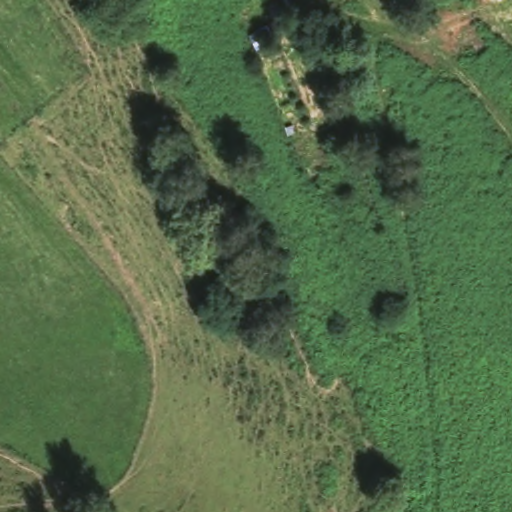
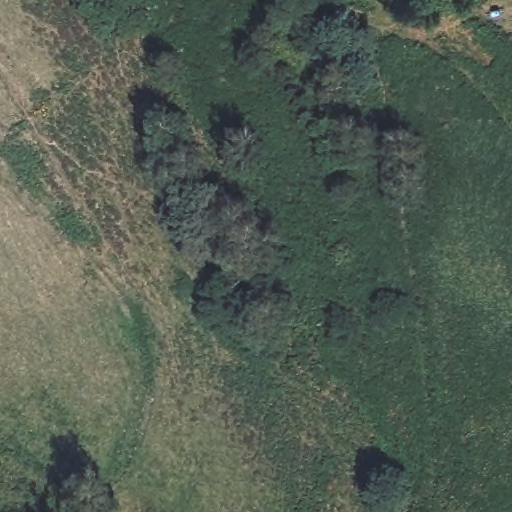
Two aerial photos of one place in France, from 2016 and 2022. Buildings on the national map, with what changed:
unchanged [(273,35),(249,44),(241,30),(265,19),(273,35)]

